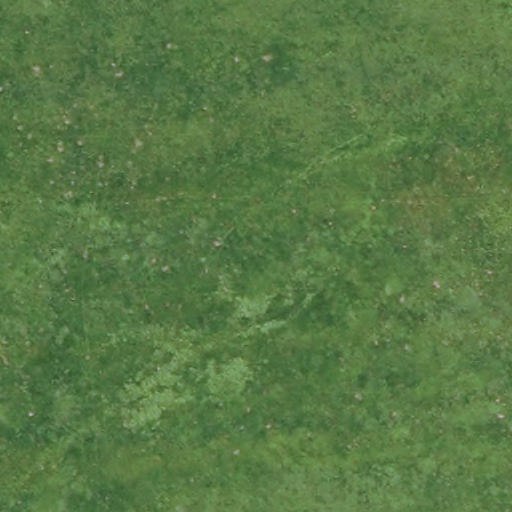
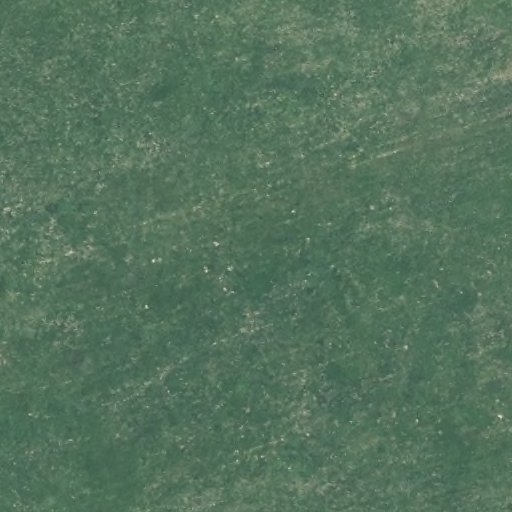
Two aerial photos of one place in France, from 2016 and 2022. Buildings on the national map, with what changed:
[]

